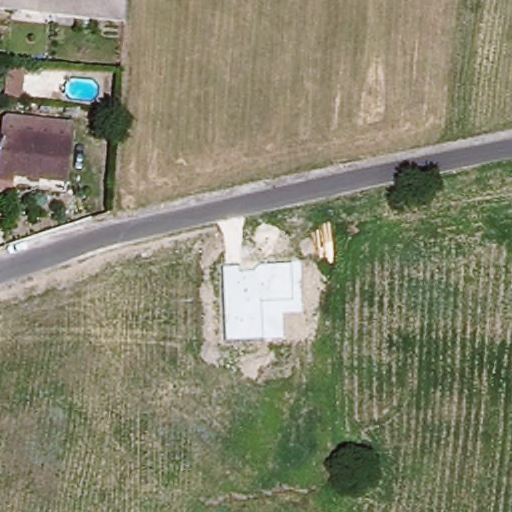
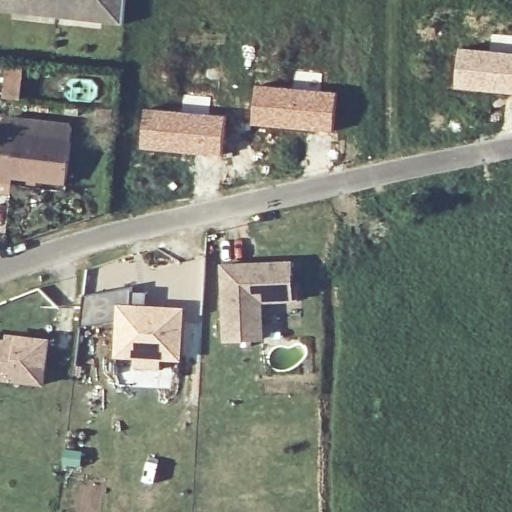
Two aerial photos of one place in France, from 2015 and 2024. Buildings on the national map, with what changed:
unchanged [(0,11),(0,0),(121,0),(119,24),(0,11)]
new [(459,45),(489,49),(492,33),(512,35),(512,94),(454,87),(459,45)]
new [(255,82),(339,91),(334,134),(251,125),(255,82)]
new [(144,106),(181,110),(183,94),(211,96),(209,112),(227,114),(223,157),(139,150),(144,106)]
unchanged [(69,176),(17,172),(16,180),(0,179),(0,150),(3,120),(74,126),(69,176)]
unchanged [(224,342),(221,264),(293,260),(296,300),(264,302),(264,340),(224,342)]
new [(118,303),(185,307),(183,361),(163,360),(163,367),(134,365),(134,358),(114,357),(118,303)]
new [(5,332),(50,338),(44,385),(0,380),(0,338),(4,339),(5,332)]

